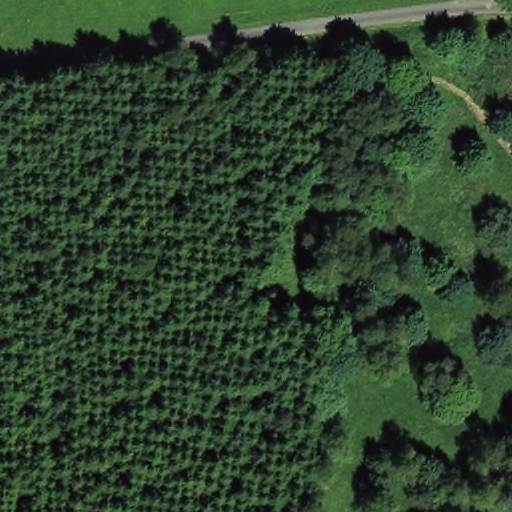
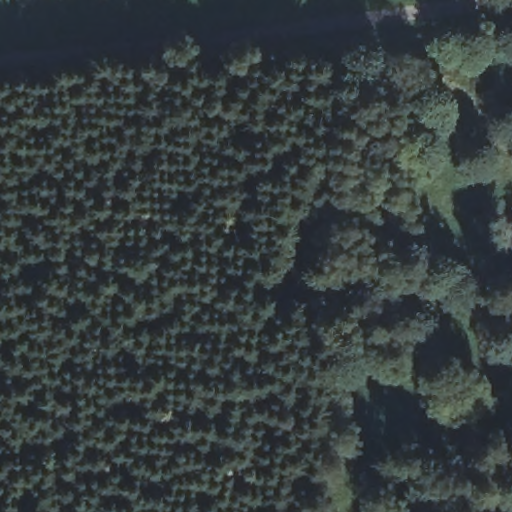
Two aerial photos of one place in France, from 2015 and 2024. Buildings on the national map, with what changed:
[]

